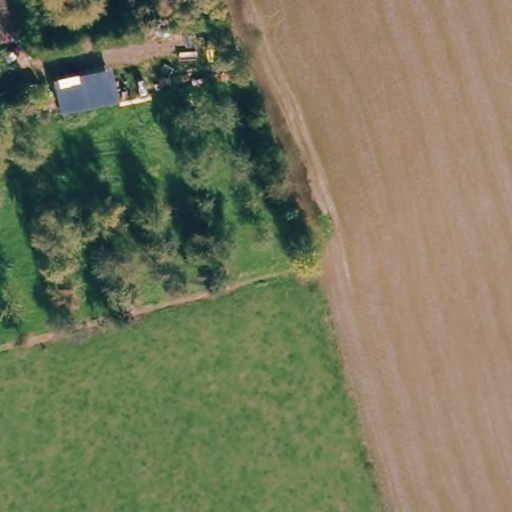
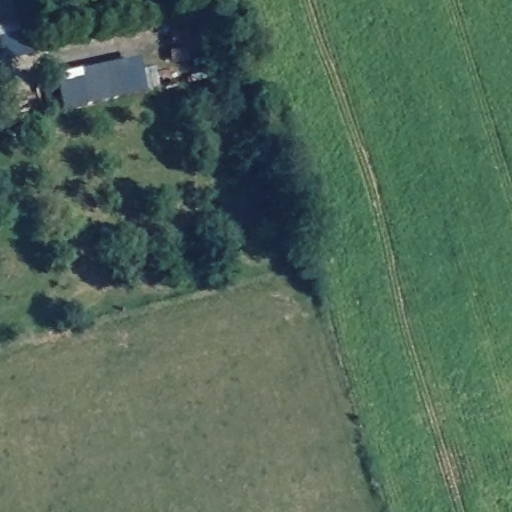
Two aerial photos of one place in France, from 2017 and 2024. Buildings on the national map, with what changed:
unchanged [(24,34),(0,39),(0,0),(17,0),(24,34)]
unchanged [(142,94),(62,112),(55,79),(138,62),(142,94)]

